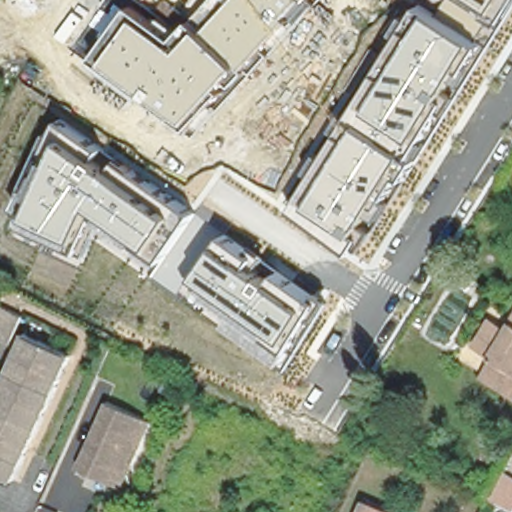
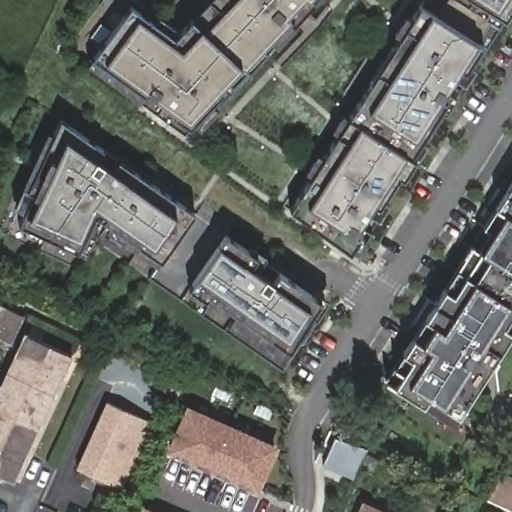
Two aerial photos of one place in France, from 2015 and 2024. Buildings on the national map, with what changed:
unchanged [(91,58),(131,7),(176,39),(214,0),(322,0),(193,136),(91,58)]
unchanged [(476,0),(507,19),(489,48),(420,6),(424,0),(476,0)]
unchanged [(476,0),(512,0),(512,10),(507,19),(476,0)]
unchanged [(290,212),(420,6),(489,48),(357,260),(290,212)]
unchanged [(162,262),(104,221),(89,257),(16,222),(60,119),(195,214),(162,262)]
demolished [(395,202),(420,160),(438,171),(414,213),(395,202)]
new [(385,380),(512,179),(512,332),(454,424),(385,380)]
unchanged [(328,304),(289,368),(187,296),(226,235),(328,304)]
unchanged [(18,308),(6,338),(0,336),(0,301),(18,308)]
demolished [(481,344),(499,316),(512,323),(512,364),(498,355),(481,344)]
unchanged [(22,332),(69,353),(11,480),(0,475),(0,380),(22,332)]
unchanged [(110,406),(113,407),(154,425),(124,492),(83,473),(81,472),(110,406)]
new [(186,406),(272,443),(254,485),(168,447),(186,406)]
new [(512,477),(512,508),(488,497),(503,472),(512,477)]
unchanged [(366,501),(391,512),(360,512),(366,501)]
new [(142,507),(154,512),(139,512),(142,507)]

